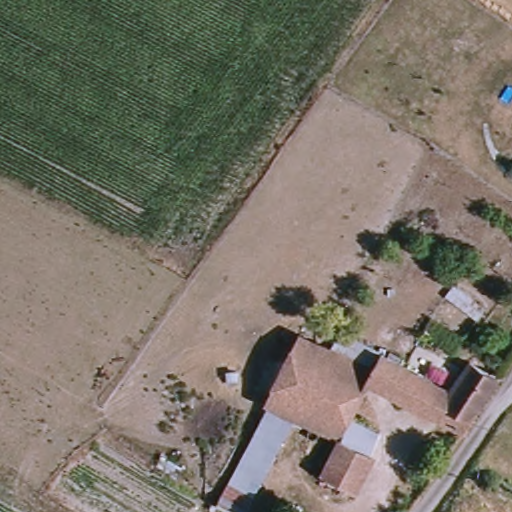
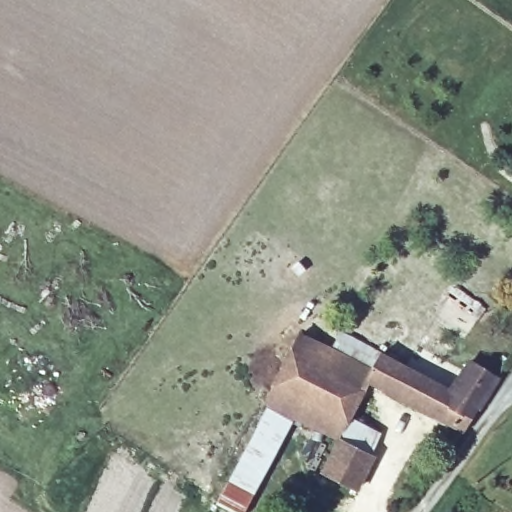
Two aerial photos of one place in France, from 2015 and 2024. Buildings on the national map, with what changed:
unchanged [(505,383),(500,391),(495,393),(465,436),(370,386),(342,443),(298,421),(266,406),(300,336),(347,359),(356,341),(452,396),(477,363),(505,383)]
unchanged [(266,406),(298,421),(249,512),(230,512),(218,507),(266,406)]
unchanged [(374,458),(358,489),(325,472),(342,443),(374,458)]

